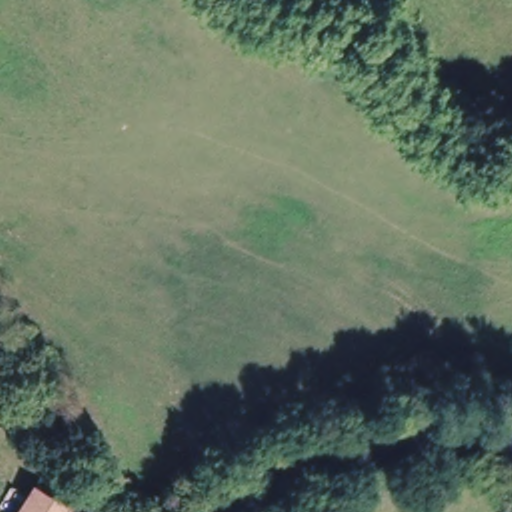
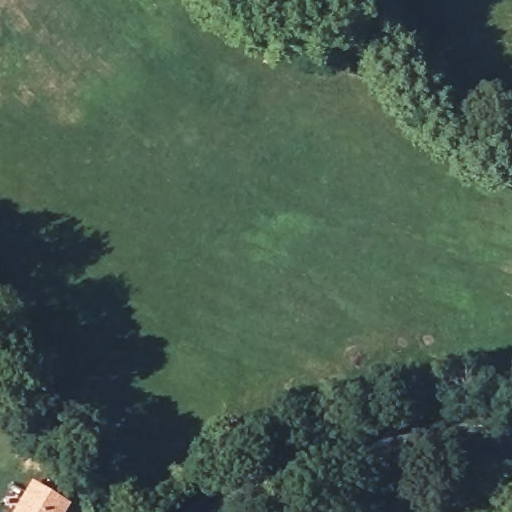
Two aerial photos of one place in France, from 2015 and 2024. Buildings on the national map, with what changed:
unchanged [(32,483),(66,503),(61,512),(16,512),(32,483)]

